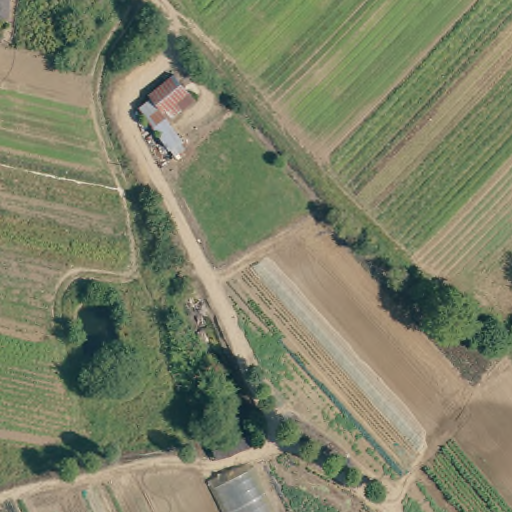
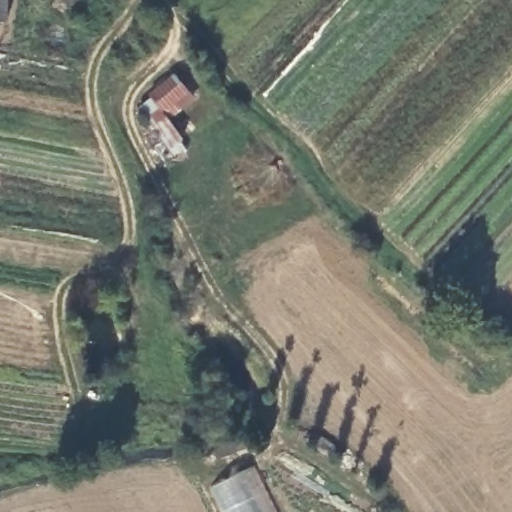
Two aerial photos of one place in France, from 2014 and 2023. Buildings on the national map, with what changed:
unchanged [(8,22),(0,22),(0,0),(9,0),(8,22)]
unchanged [(141,112),(153,101),(151,96),(174,79),(195,104),(169,126),(183,143),(170,153),(141,112)]
unchanged [(224,512),(208,480),(256,462),(281,512),(224,512)]

